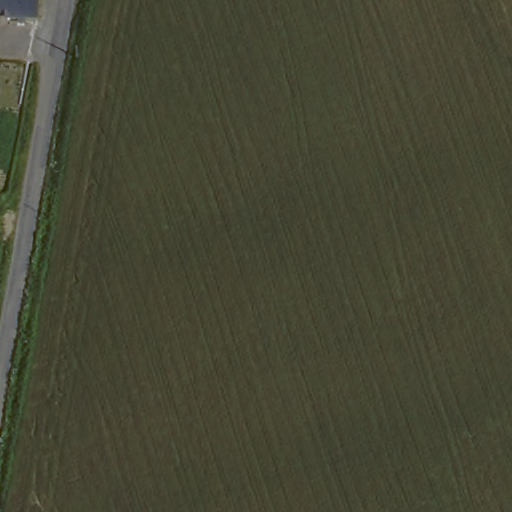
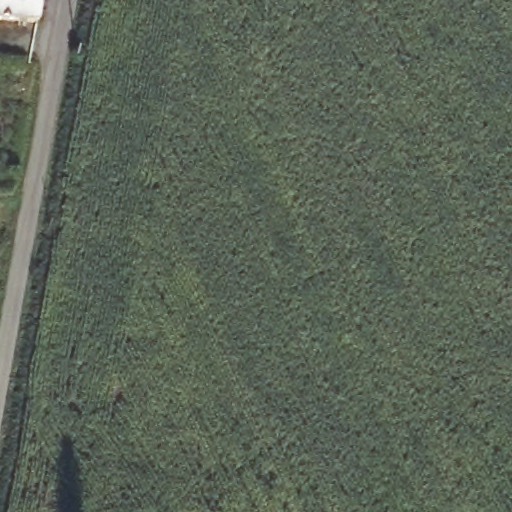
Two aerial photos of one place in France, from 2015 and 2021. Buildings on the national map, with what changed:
unchanged [(38,25),(0,22),(0,0),(40,0),(38,25)]

